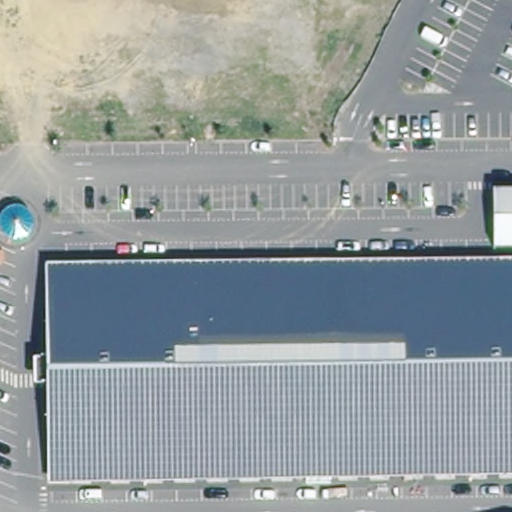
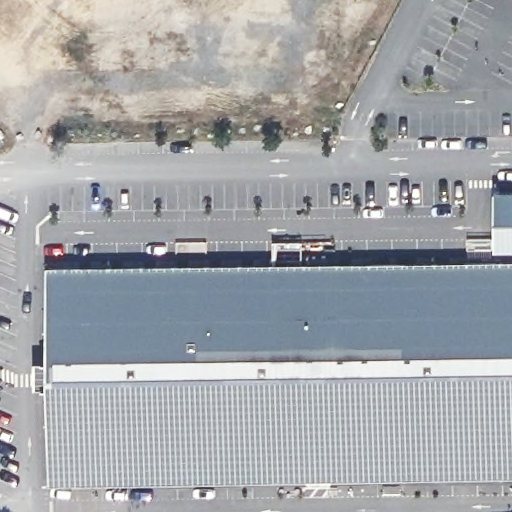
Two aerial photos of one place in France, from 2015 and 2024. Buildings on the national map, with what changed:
unchanged [(512,242),(498,242),(499,186),(512,186),(512,242)]
unchanged [(512,265),(512,471),(56,464),(60,258),(512,265)]

